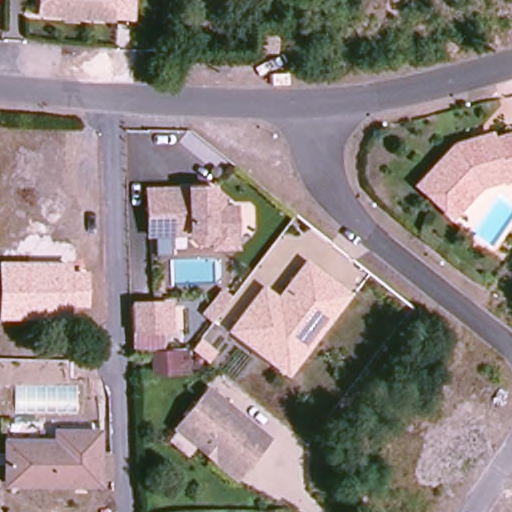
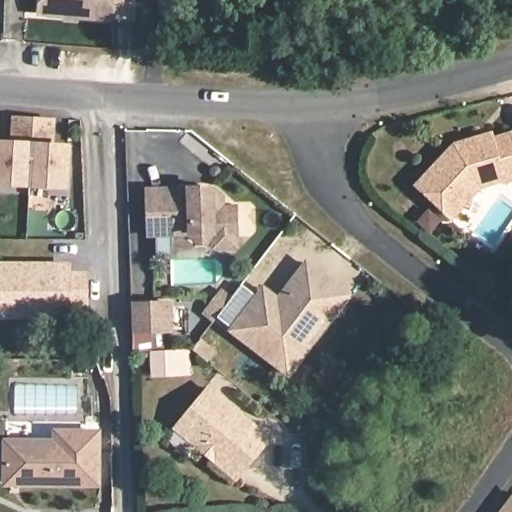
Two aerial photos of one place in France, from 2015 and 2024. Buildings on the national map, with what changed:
unchanged [(42,0),(113,0),(112,18),(51,14),(42,14),(42,5),(42,0)]
unchanged [(274,26),(274,42),(257,42),(256,26),(274,26)]
new [(0,185),(0,138),(10,139),(12,115),(56,118),(55,141),(71,143),(69,189),(0,185)]
unchanged [(454,220),(413,189),(454,142),(492,131),(494,135),(512,131),(512,179),(479,187),(454,220)]
unchanged [(188,185),(217,184),(219,204),(238,206),(238,209),(251,208),(252,228),(239,232),(238,238),(218,239),(210,244),(202,245),(193,243),(188,237),(147,240),(144,188),(188,185)]
unchanged [(265,284),(277,294),(307,259),(354,296),(287,379),(231,334),(265,284)]
unchanged [(73,262),(73,270),(90,271),(89,319),(0,319),(0,261),(73,262)]
unchanged [(174,335),(164,336),(167,352),(190,352),(192,373),(152,378),(150,352),(131,353),(128,303),(173,302),(174,335)]
unchanged [(237,484),(173,430),(211,386),(275,439),(237,484)]
unchanged [(56,439),(56,426),(102,427),(102,483),(5,481),(6,438),(56,439)]
new [(512,512),(507,512),(512,505),(512,512)]

